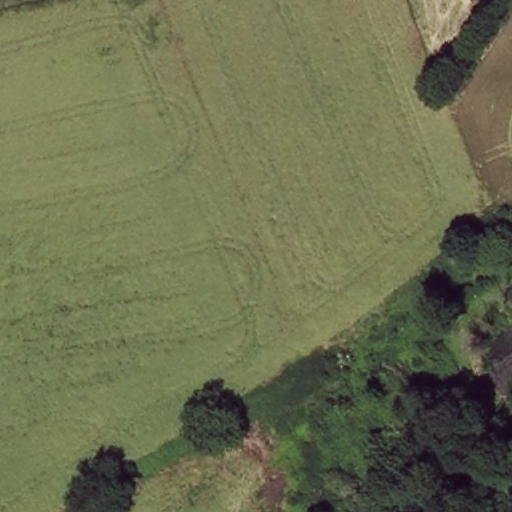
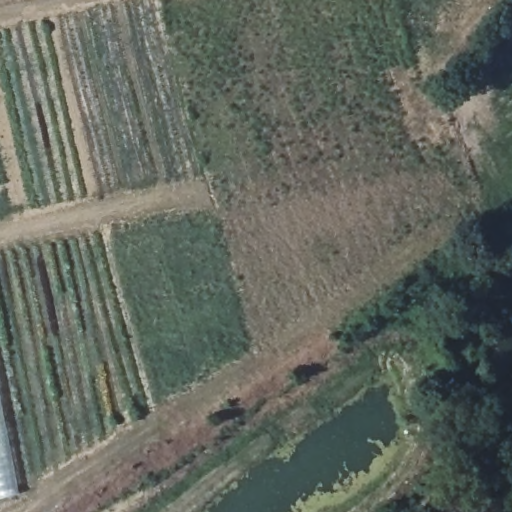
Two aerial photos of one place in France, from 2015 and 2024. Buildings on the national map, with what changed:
new [(19,495),(0,499),(0,395),(19,495)]

